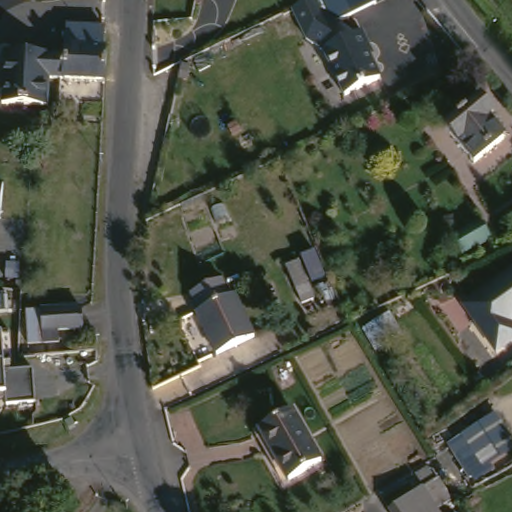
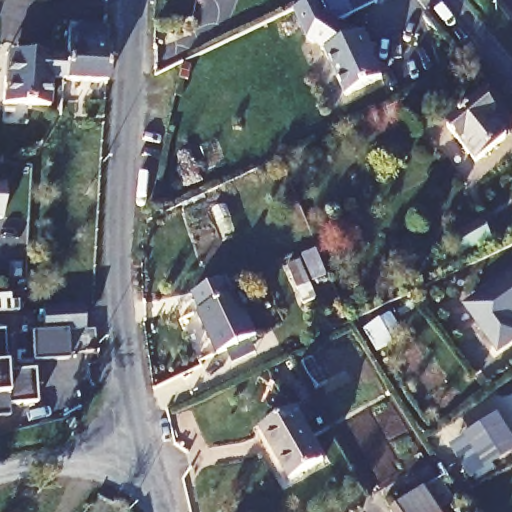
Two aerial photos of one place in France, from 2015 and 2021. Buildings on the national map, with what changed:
unchanged [(312,0),(375,0),(377,4),(346,16),(334,10),(314,40),(293,9),(312,0)]
unchanged [(346,16),(358,23),(367,30),(374,26),(383,44),(378,46),(389,75),(355,90),(338,55),(314,40),(334,10),(346,16)]
unchanged [(114,25),(110,81),(55,77),(54,101),(5,98),(9,48),(69,51),(71,22),(114,25)]
unchanged [(492,110),(508,129),(476,154),(446,117),(483,89),(497,106),(492,110)]
unchanged [(6,215),(0,215),(0,176),(10,176),(6,215)]
unchanged [(492,240),(463,255),(454,235),(483,220),(492,240)]
unchanged [(312,277),(300,250),(318,244),(329,271),(312,277)]
unchanged [(300,294),(288,264),(300,258),(313,288),(300,294)]
unchanged [(242,289),(247,287),(265,329),(227,346),(203,293),(236,277),(242,289)]
unchanged [(502,357),(478,325),(487,318),(477,304),(512,277),(512,349),(502,357)]
unchanged [(83,328),(61,329),(61,341),(29,343),(28,310),(82,308),(83,328)]
unchanged [(15,360),(43,360),(43,390),(0,392),(0,327),(15,325),(15,360)]
unchanged [(324,460),(289,480),(261,431),(295,411),(324,460)]
unchanged [(512,437),(512,450),(491,465),(494,469),(472,481),(448,443),(497,412),(512,437)]
unchanged [(417,483),(429,476),(451,512),(404,512),(395,497),(417,483)]

